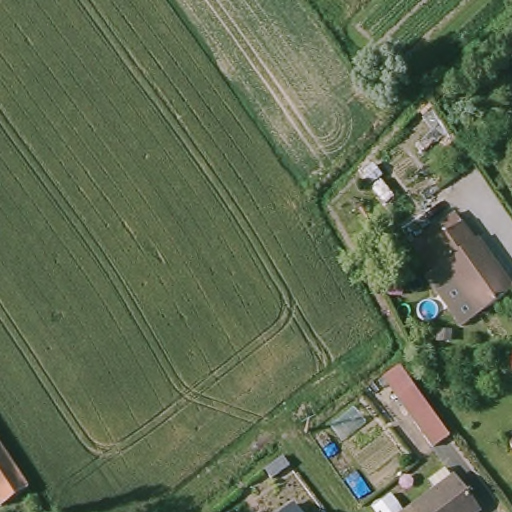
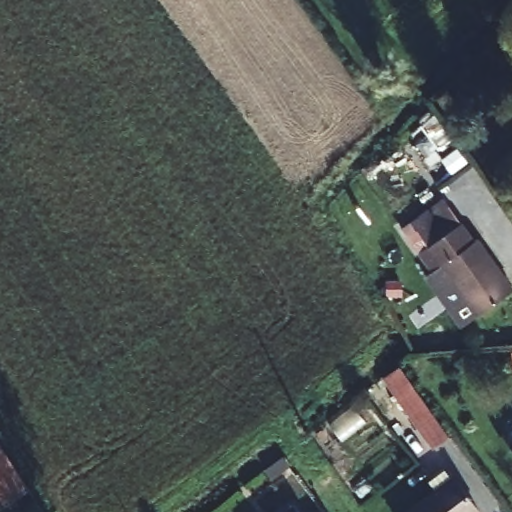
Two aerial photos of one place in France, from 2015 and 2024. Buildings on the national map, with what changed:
unchanged [(433,248),(427,239),(460,215),(467,224),(479,242),(482,240),(512,283),(512,296),(484,316),(448,265),(437,273),(424,254),(433,248)]
unchanged [(448,265),(484,316),(467,328),(431,277),(437,273),(448,265)]
unchanged [(432,448),(397,399),(398,398),(383,378),(399,367),(414,387),(449,436),(432,448)]
unchanged [(504,445),(512,440),(512,456),(504,445)]
unchanged [(0,512),(0,511),(0,452),(28,494),(0,512)]
unchanged [(288,467),(271,480),(264,470),(281,457),(288,467)]
unchanged [(453,482),(474,512),(413,512),(435,495),(428,485),(444,474),(451,484),(453,482)]

